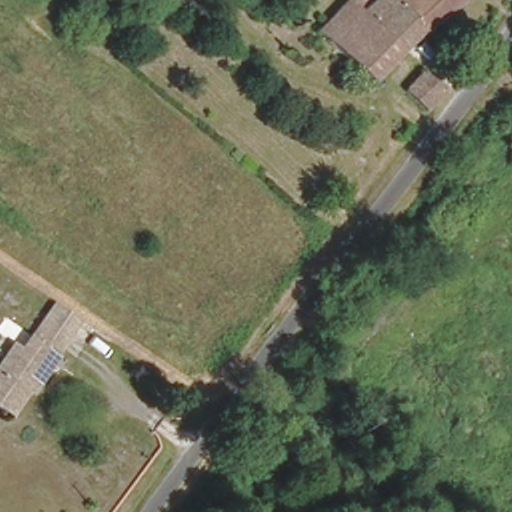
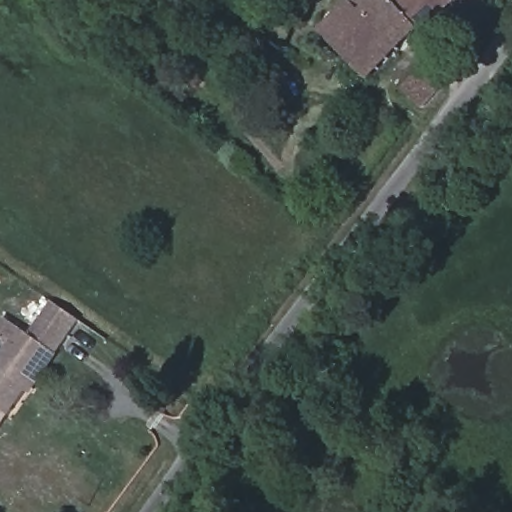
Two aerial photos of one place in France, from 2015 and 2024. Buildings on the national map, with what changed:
unchanged [(416,27),(365,80),(314,32),(341,4),(358,19),(379,0),(456,0),(423,33),(416,27)]
unchanged [(432,114),(412,98),(426,80),(445,95),(432,114)]
unchanged [(25,328),(47,300),(81,324),(58,355),(25,328)]
unchanged [(25,328),(58,355),(17,418),(0,407),(0,360),(25,328)]

